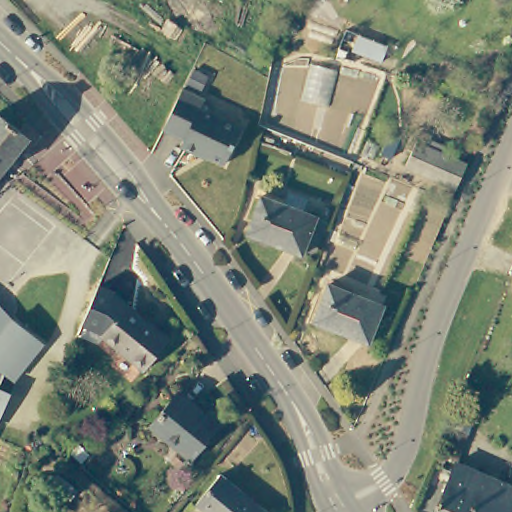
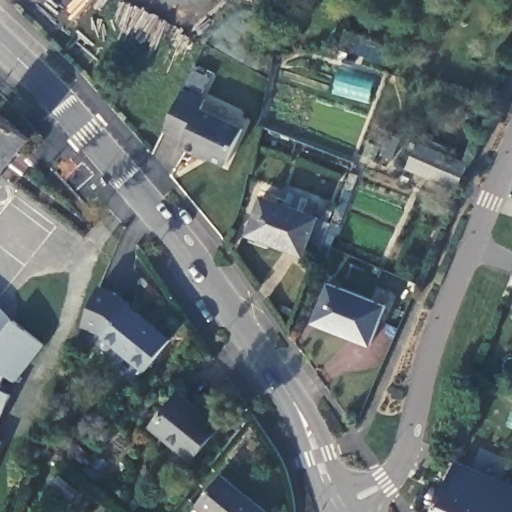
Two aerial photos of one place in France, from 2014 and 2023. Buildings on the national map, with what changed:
unchanged [(360,36),(388,46),(381,63),(353,52),(360,36)]
unchanged [(205,99),(201,108),(243,129),(225,164),(200,152),(199,154),(181,145),(185,139),(164,129),(177,101),(184,88),(205,99)]
unchanged [(0,176),(0,112),(2,109),(34,133),(0,176)]
unchanged [(385,130),(395,134),(386,155),(376,151),(385,130)]
unchanged [(416,143),(417,140),(420,132),(431,136),(428,144),(427,147),(467,163),(456,189),(405,169),(416,143)]
unchanged [(318,218),(303,254),(250,232),(264,196),(318,218)]
unchanged [(383,302),(370,339),(315,317),(330,281),(383,302)]
unchanged [(172,335),(148,365),(105,332),(129,302),(172,335)]
unchanged [(10,392),(0,414),(0,309),(45,343),(10,392)]
unchanged [(176,389),(215,420),(189,454),(150,422),(176,389)]
unchanged [(439,512),(461,463),(512,485),(512,512),(439,512)]
unchanged [(265,512),(211,512),(196,500),(220,471),(267,509),(265,512)]

